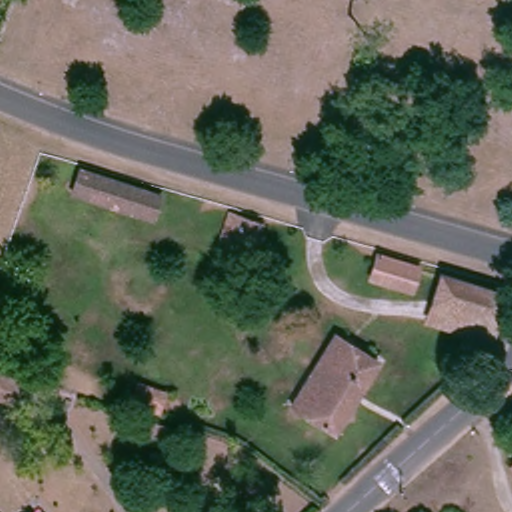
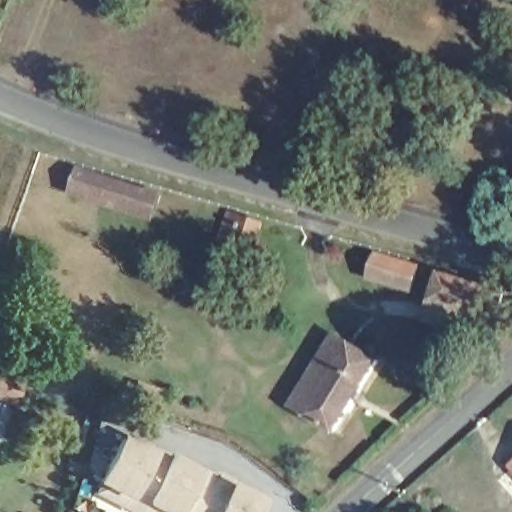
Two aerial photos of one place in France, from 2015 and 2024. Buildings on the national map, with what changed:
unchanged [(69,168),(180,199),(172,224),(61,194),(69,168)]
unchanged [(253,256),(220,247),(229,219),(261,229),(253,256)]
unchanged [(410,295),(375,285),(381,262),(417,271),(410,295)]
unchanged [(442,276),(504,294),(496,321),(433,303),(442,276)]
unchanged [(496,321),(490,340),(487,342),(427,324),(433,303),(496,321)]
unchanged [(337,430),(295,405),(337,337),(378,364),(337,430)]
unchanged [(20,410),(0,403),(0,372),(30,381),(20,410)]
unchanged [(158,415),(124,405),(131,385),(165,397),(158,415)]
demolished [(136,434),(141,420),(169,429),(164,442),(136,434)]
new [(99,484),(122,435),(265,498),(257,512),(130,512),(95,494),(99,484)]
unchanged [(510,467),(512,464),(512,469),(510,467)]

